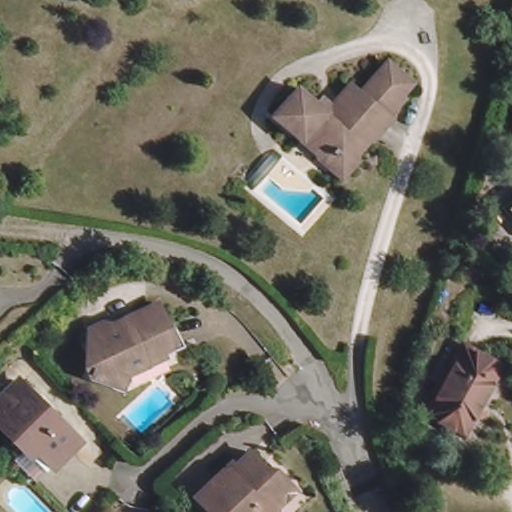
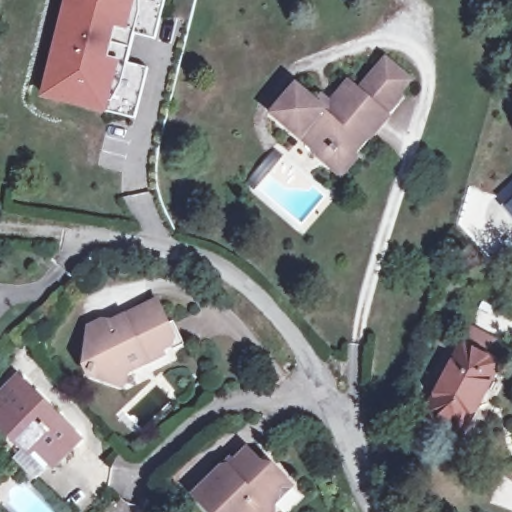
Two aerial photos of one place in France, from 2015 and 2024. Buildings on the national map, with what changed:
new [(154,38),(135,33),(127,64),(147,69),(135,119),(107,114),(40,97),(65,0),(164,0),(154,38)]
unchanged [(319,152),(274,113),(296,86),(315,102),(321,95),(330,103),(349,82),(359,91),(385,59),(411,80),(389,107),(379,98),(374,103),(389,117),(372,137),(343,172),(319,152)]
unchanged [(512,201),(512,215),(505,207),(512,201)]
unchanged [(103,327),(100,322),(151,297),(170,333),(166,339),(157,344),(159,350),(123,368),(118,380),(88,371),(93,355),(84,336),(103,327)]
unchanged [(462,432),(426,412),(463,344),(498,364),(462,432)]
unchanged [(80,442),(53,473),(29,449),(18,460),(0,442),(0,383),(11,372),(80,442)]
unchanged [(218,470),(224,472),(248,449),(288,491),(269,509),(268,512),(202,512),(189,498),(218,470)]

